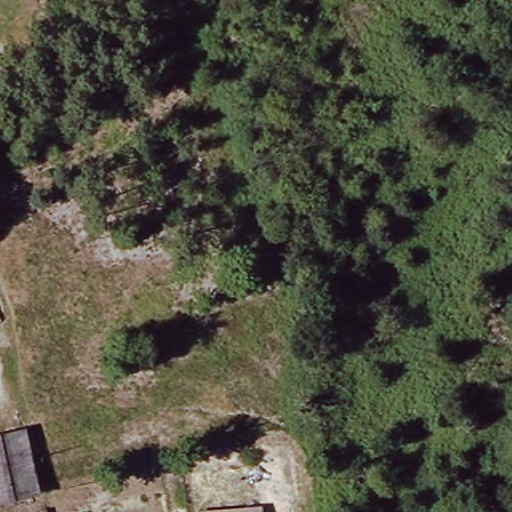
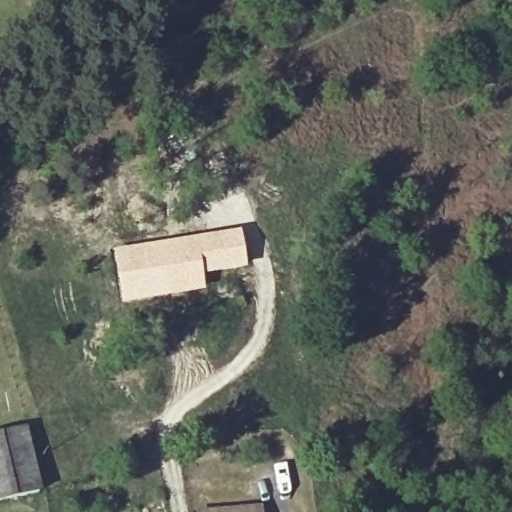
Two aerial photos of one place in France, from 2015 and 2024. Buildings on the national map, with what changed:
new [(239,230),(245,269),(202,276),(204,292),(119,305),(110,251),(239,230)]
unchanged [(26,431),(41,496),(0,507),(0,436),(26,431)]
unchanged [(261,508),(262,512),(220,512),(261,508)]

